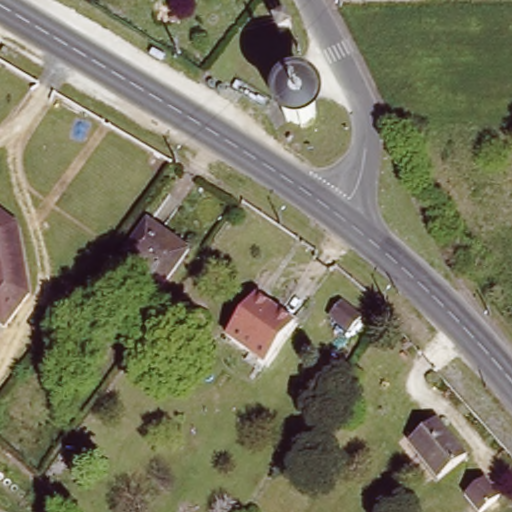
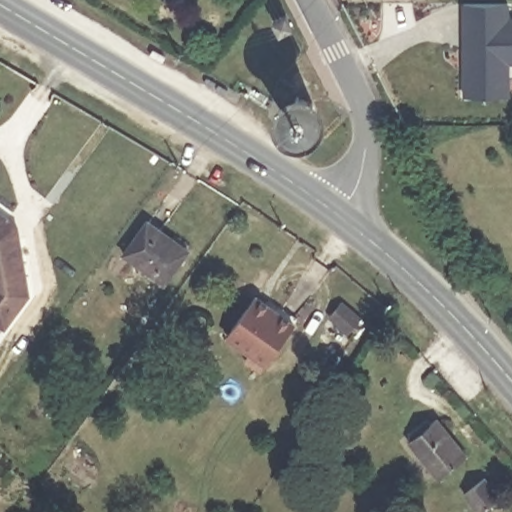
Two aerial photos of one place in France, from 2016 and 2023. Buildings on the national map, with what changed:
new [(488,96),(464,97),(462,5),(505,4),(505,19),(512,19),(512,62),(507,62),(507,96),(488,96)]
unchanged [(29,297),(4,331),(0,328),(0,211),(19,225),(29,297)]
unchanged [(126,255),(150,222),(190,251),(166,285),(126,255)]
unchanged [(357,315),(345,327),(328,310),(340,298),(357,315)]
unchanged [(257,300),(292,325),(267,360),(232,336),(257,300)]
demolished [(355,338),(344,350),(326,333),(338,321),(355,338)]
unchanged [(469,459),(442,478),(412,440),(439,420),(469,459)]
unchanged [(471,501),(491,485),(505,504),(495,512),(480,512),(471,501)]

